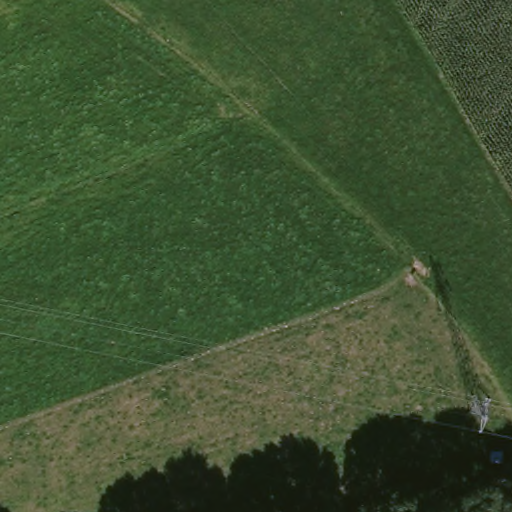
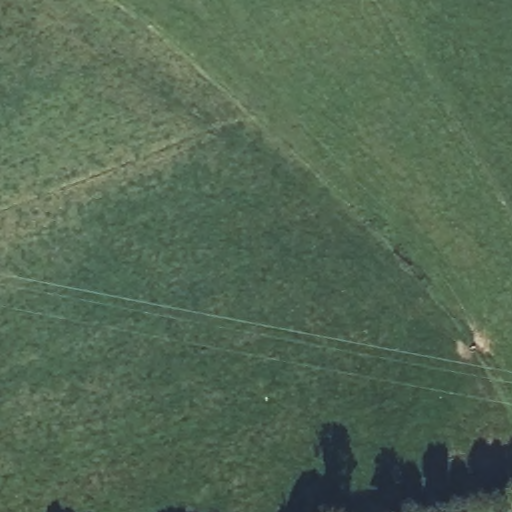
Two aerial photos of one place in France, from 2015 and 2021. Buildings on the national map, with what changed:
[]

